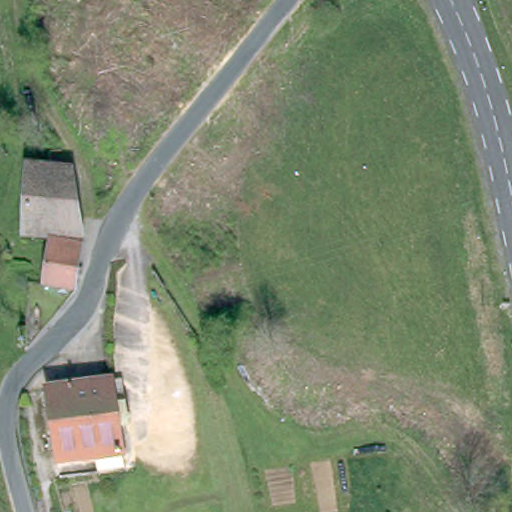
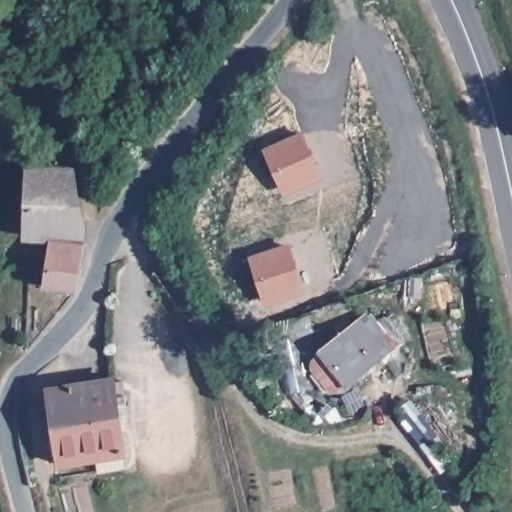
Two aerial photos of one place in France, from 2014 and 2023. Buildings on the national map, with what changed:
new [(302,135),(320,177),(287,192),(269,149),(302,135)]
unchanged [(73,279),(70,284),(40,280),(48,235),(24,231),(28,161),(67,165),(71,165),(73,182),(79,231),(73,279)]
new [(293,247),(306,292),(265,305),(251,260),(293,247)]
new [(378,321),(387,314),(406,338),(347,387),(329,393),(305,363),(369,310),(378,321)]
unchanged [(57,457),(42,383),(109,372),(119,371),(124,402),(114,404),(122,446),(57,457)]

